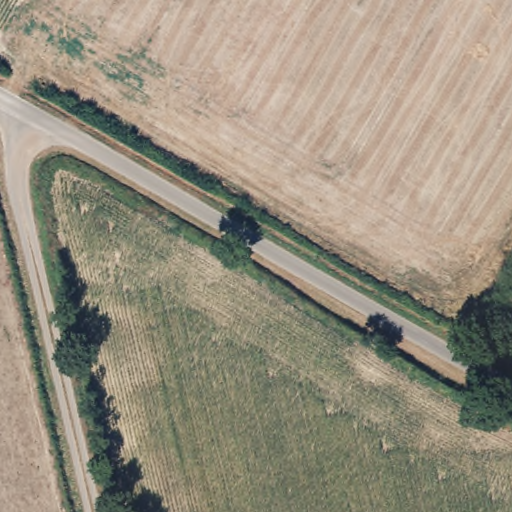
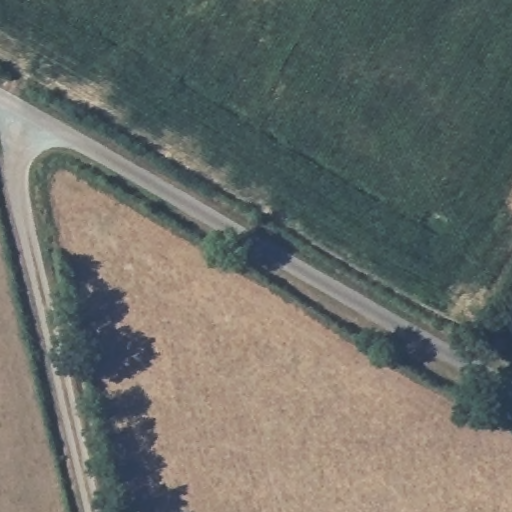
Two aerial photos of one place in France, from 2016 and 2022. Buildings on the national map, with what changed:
[]

